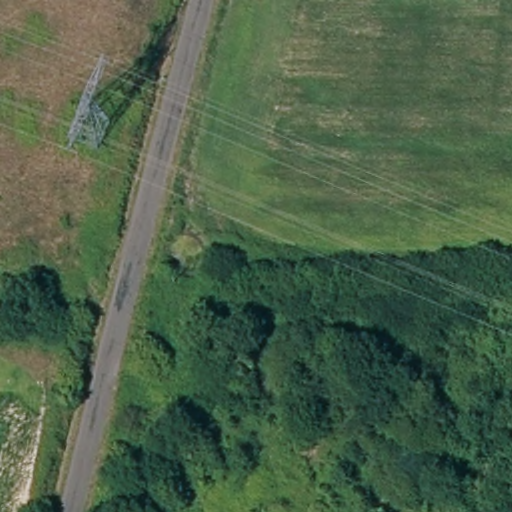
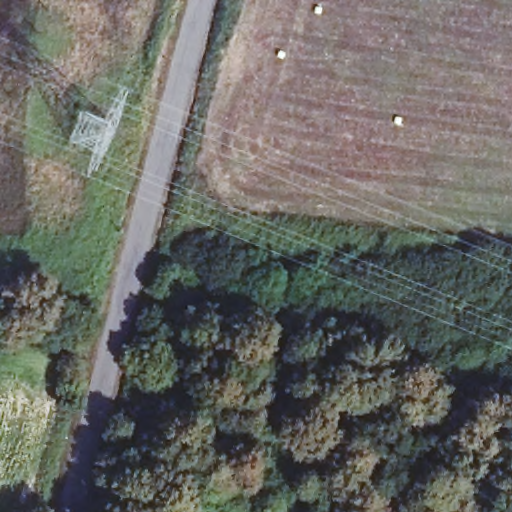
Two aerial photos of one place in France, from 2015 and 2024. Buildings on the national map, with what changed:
[]

